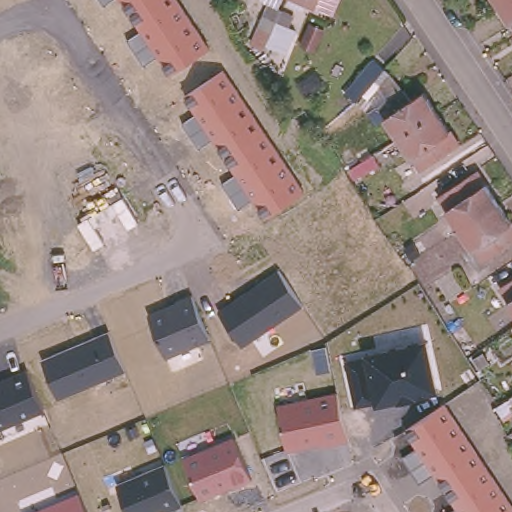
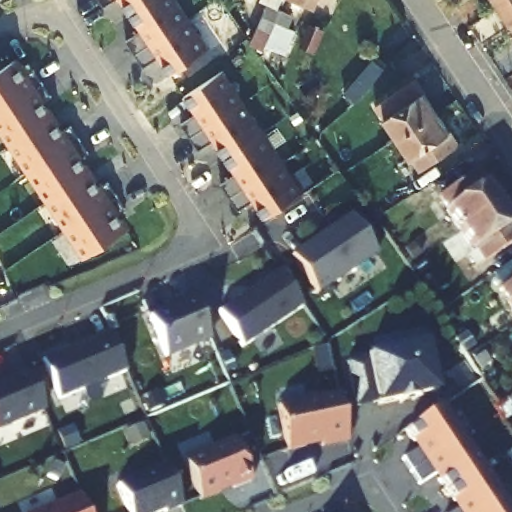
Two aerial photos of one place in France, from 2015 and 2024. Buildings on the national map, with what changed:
unchanged [(105,6),(100,0),(114,0),(105,6)]
unchanged [(157,60),(145,68),(127,42),(140,31),(118,0),(177,0),(209,49),(169,76),(157,60)]
unchanged [(286,19),(275,14),(264,9),(268,0),(274,0),(280,3),(291,9),(286,19)]
unchanged [(316,2),(311,0),(317,0),(316,2)]
unchanged [(497,0),(512,0),(512,1),(502,8),(497,0)]
unchanged [(512,1),(512,23),(502,8),(512,1)]
new [(0,132),(0,72),(19,60),(128,225),(82,255),(0,132)]
unchanged [(404,90),(379,107),(364,85),(360,79),(385,61),(389,66),(404,90)]
unchanged [(251,200),(237,211),(222,186),(234,177),(212,141),(200,150),(182,125),(195,115),(184,100),(223,70),(306,194),(265,220),(251,200)]
unchanged [(384,120),(386,119),(379,107),(404,90),(412,101),(424,93),(437,112),(397,139),(384,120)]
unchanged [(449,131),(451,130),(461,144),(421,170),(412,156),(410,158),(397,139),(437,112),(449,131)]
unchanged [(462,236),(450,217),(452,215),(442,202),(482,175),(491,188),(489,190),(502,210),(462,236)]
unchanged [(512,224),(512,250),(487,267),(477,254),(476,255),(462,236),(502,210),(512,224)]
new [(292,255),(349,216),(375,254),(317,293),(292,255)]
unchanged [(279,270),(302,305),(242,346),(220,312),(279,270)]
unchanged [(507,304),(509,302),(500,290),(512,281),(512,311),(507,304)]
unchanged [(176,303),(175,300),(192,293),(212,342),(166,358),(147,313),(176,303)]
unchanged [(107,332),(124,372),(58,398),(42,360),(107,332)]
unchanged [(438,393),(375,406),(374,401),(354,408),(347,361),(365,353),(427,341),(438,393)]
unchanged [(44,411),(0,430),(0,379),(27,367),(44,411)]
unchanged [(348,441),(286,451),(277,402),(337,391),(348,441)]
unchanged [(432,473),(418,484),(403,459),(417,449),(404,431),(445,405),(512,505),(512,512),(452,512),(456,509),(432,473)]
unchanged [(253,480),(199,500),(181,456),(233,435),(253,480)]
unchanged [(169,512),(162,512),(162,510),(158,512),(127,512),(117,482),(165,465),(182,506),(169,512)]
unchanged [(33,512),(79,495),(87,512),(33,512)]

